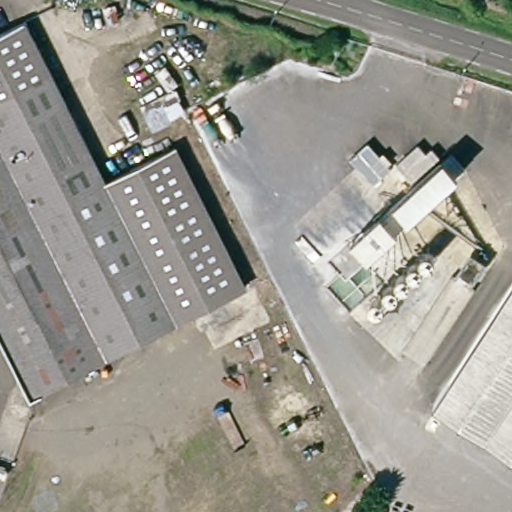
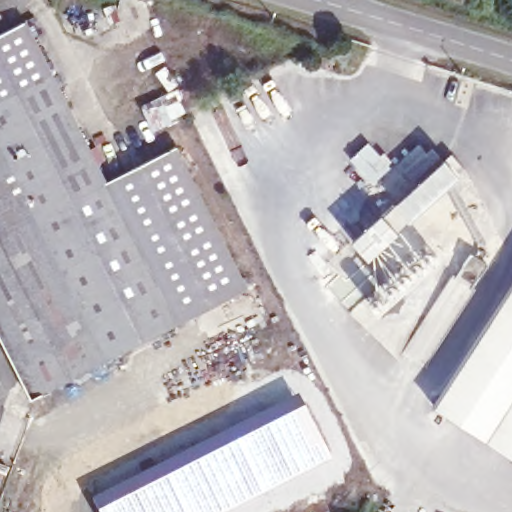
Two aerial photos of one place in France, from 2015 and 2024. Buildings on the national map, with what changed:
unchanged [(246,286),(35,391),(28,376),(3,327),(0,328),(0,33),(27,20),(106,179),(177,145),(246,286)]
new [(153,131),(141,107),(168,93),(157,71),(165,67),(188,114),(153,131)]
unchanged [(373,147),(393,170),(396,174),(385,183),(377,190),(354,163),(373,147)]
unchanged [(423,150),(431,159),(436,154),(444,163),(416,187),(400,170),(423,150)]
unchanged [(356,246),(386,220),(455,160),(469,175),(400,235),(370,262),(356,246)]
unchanged [(512,457),(497,447),(432,406),(435,402),(512,283),(512,457)]
new [(180,467),(221,447),(302,405),(332,460),(229,512),(97,512),(96,510),(180,467)]
new [(182,454),(183,458),(177,462),(180,467),(96,510),(91,498),(182,454)]

